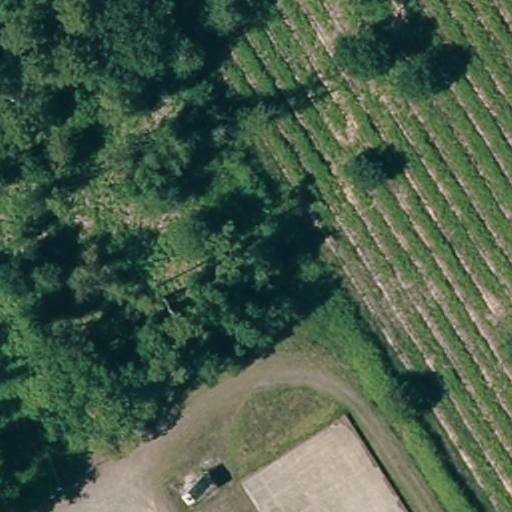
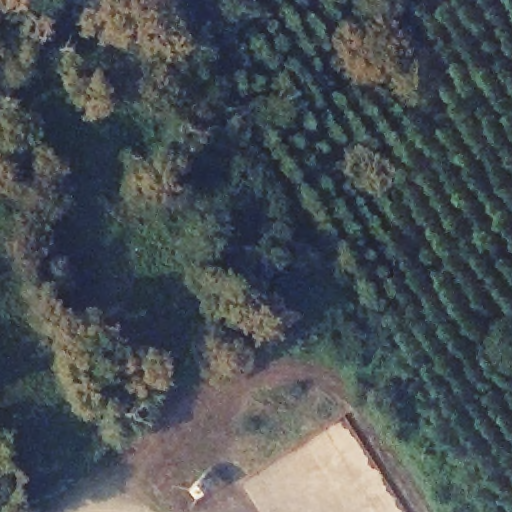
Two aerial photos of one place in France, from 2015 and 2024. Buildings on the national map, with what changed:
unchanged [(196,492),(189,501),(180,497),(180,485),(195,482),(196,492)]

